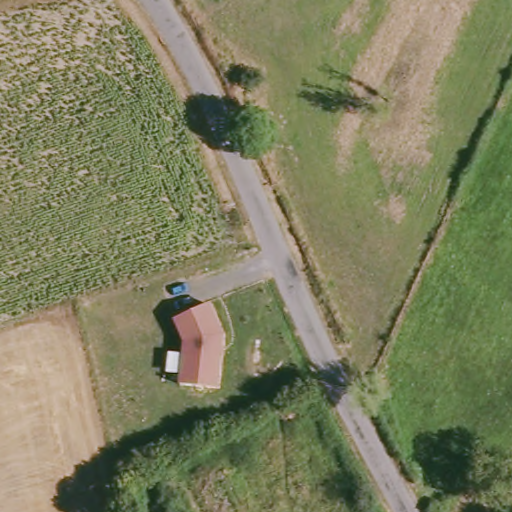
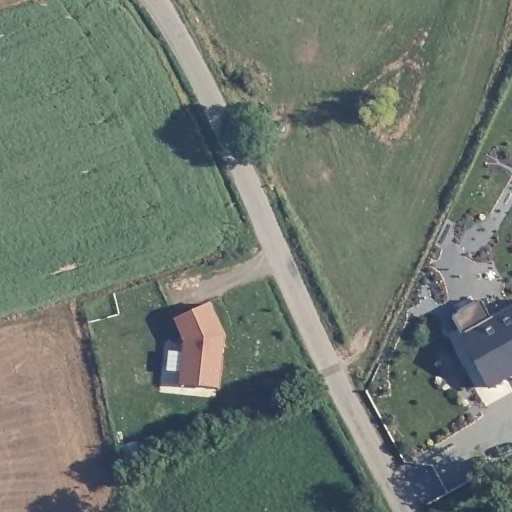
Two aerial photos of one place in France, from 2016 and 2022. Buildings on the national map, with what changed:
new [(489,389),(458,336),(463,333),(453,316),(480,300),(490,318),(512,307),(512,376),(489,389)]
unchanged [(180,385),(184,345),(175,322),(210,306),(225,338),(220,390),(180,385)]

